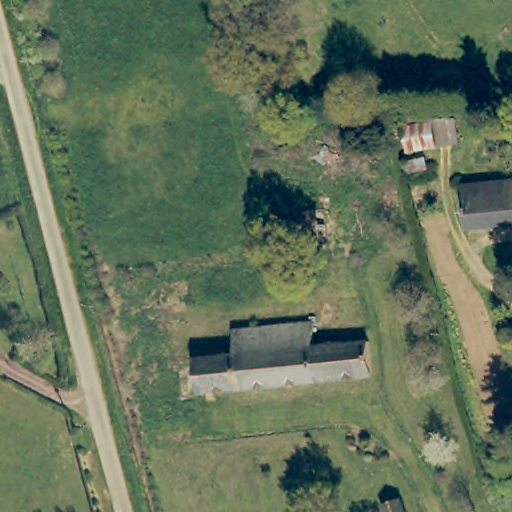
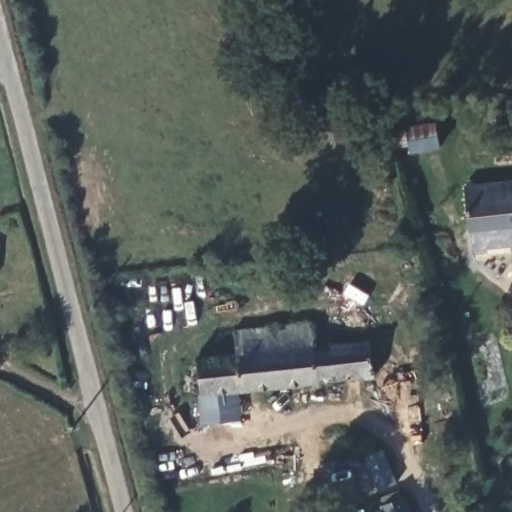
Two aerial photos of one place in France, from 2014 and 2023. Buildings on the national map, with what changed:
unchanged [(430,106),(432,121),(444,121),(446,173),(428,174),(426,159),(412,160),(404,108),(430,106)]
unchanged [(468,229),(464,185),(512,181),(512,225),(468,229)]
unchanged [(370,346),(377,379),(285,389),(274,331),(314,326),(317,352),(370,346)]
unchanged [(205,397),(198,363),(237,358),(234,335),(274,331),(285,389),(205,397)]
unchanged [(386,512),(383,504),(400,498),(405,512),(386,512)]

